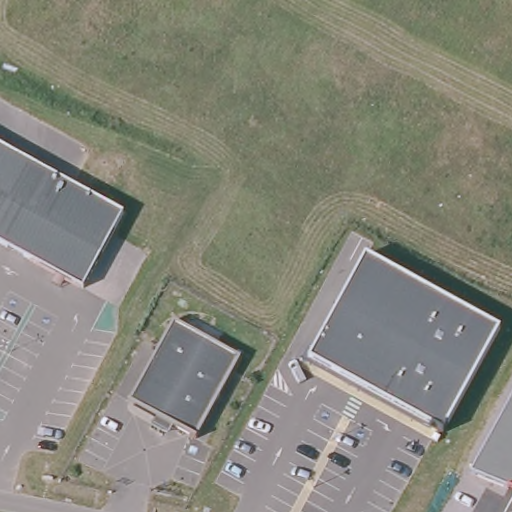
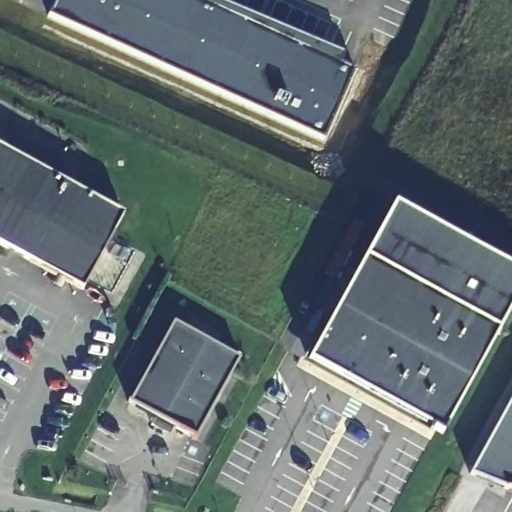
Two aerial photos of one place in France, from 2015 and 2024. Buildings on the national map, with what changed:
new [(340,64),(355,71),(325,136),(50,16),(57,0),(214,0),(344,54),(340,64)]
unchanged [(83,290),(0,244),(0,147),(123,215),(83,290)]
unchanged [(443,433),(308,360),(397,209),(512,277),(512,312),(443,433)]
unchanged [(155,416),(130,402),(173,324),(240,358),(196,438),(175,426),(169,436),(150,426),(155,416)]
unchanged [(471,474),(512,399),(512,489),(471,474)]

